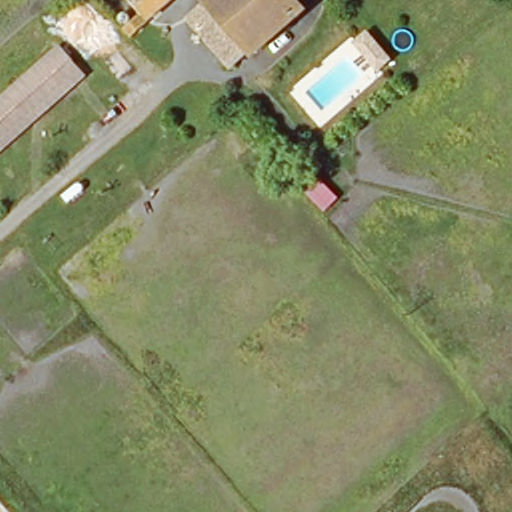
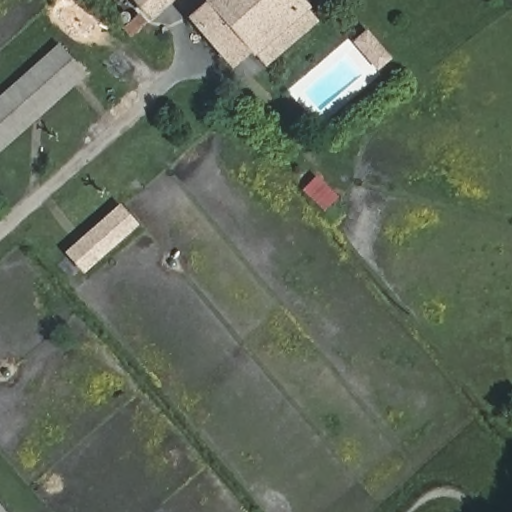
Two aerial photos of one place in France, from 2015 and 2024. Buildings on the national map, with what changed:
unchanged [(133,0),(171,0),(150,18),(133,0)]
unchanged [(195,19),(218,0),(294,0),(303,10),(237,67),(195,19)]
unchanged [(394,55),(380,69),(354,45),(370,32),(394,55)]
unchanged [(0,126),(0,102),(61,47),(74,60),(0,126)]
unchanged [(86,74),(0,152),(0,126),(74,60),(86,74)]
new [(85,274),(65,253),(120,204),(140,225),(85,274)]

